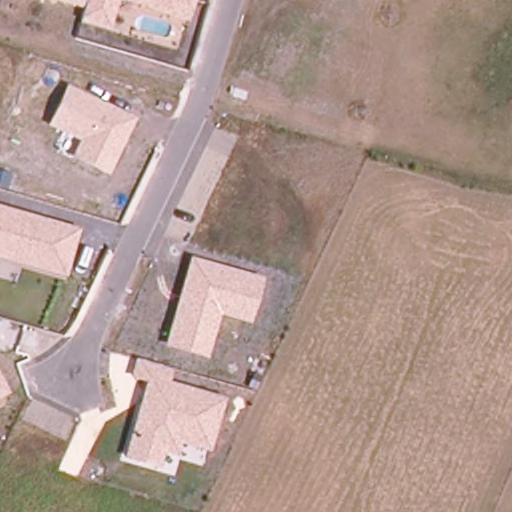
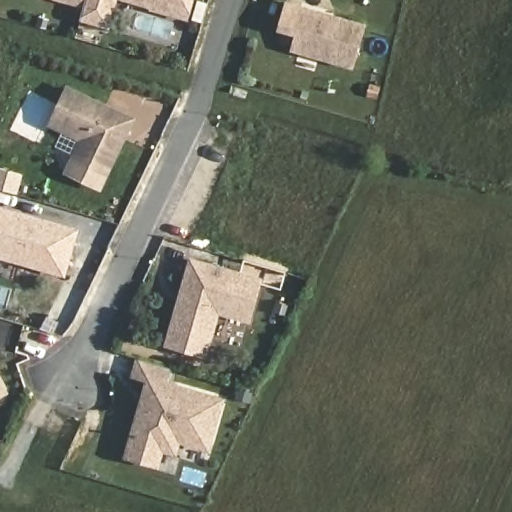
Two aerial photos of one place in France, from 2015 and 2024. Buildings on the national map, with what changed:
unchanged [(119,3),(111,30),(80,22),(84,9),(50,0),(193,0),(187,20),(119,3)]
new [(352,69),(291,53),(296,35),(280,31),(288,4),(366,25),(352,69)]
unchanged [(108,176),(71,158),(80,140),(46,125),(65,85),(136,119),(108,176)]
unchanged [(0,259),(0,207),(79,230),(66,277),(0,259)]
unchanged [(249,324),(219,315),(207,359),(164,347),(190,257),(262,278),(249,324)]
unchanged [(210,453),(181,444),(178,457),(163,452),(160,467),(123,459),(146,382),(130,379),(134,359),(171,369),(168,382),(224,400),(210,453)]
unchanged [(0,381),(7,394),(0,398),(0,381)]

